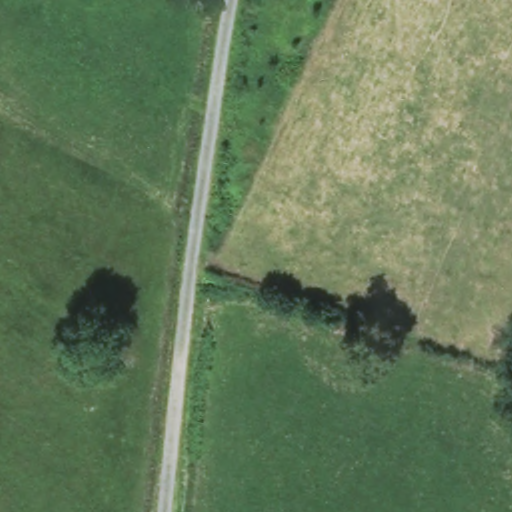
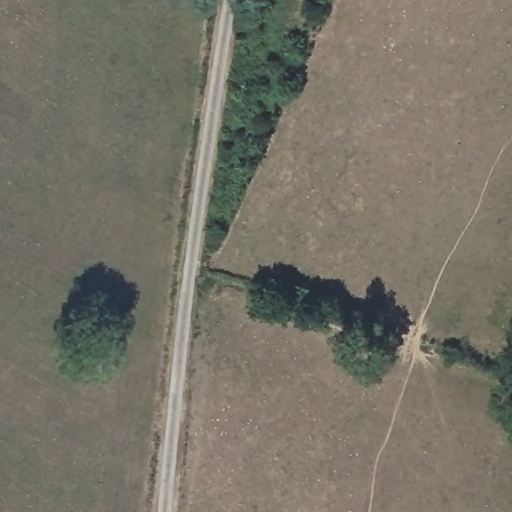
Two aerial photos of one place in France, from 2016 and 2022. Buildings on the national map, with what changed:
[]

